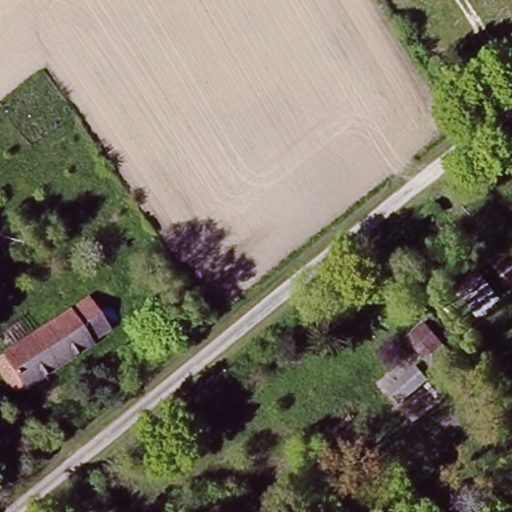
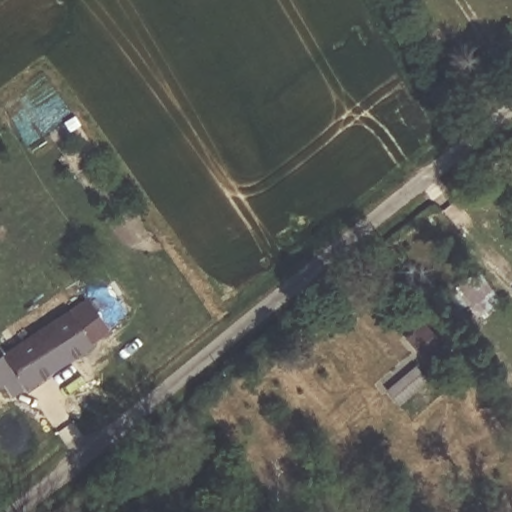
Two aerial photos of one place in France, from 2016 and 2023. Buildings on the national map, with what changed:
unchanged [(473,277),(493,308),(483,315),(464,284),(473,277)]
unchanged [(18,389),(14,383),(9,387),(0,374),(0,360),(72,310),(88,298),(112,330),(94,342),(34,385),(30,380),(18,389)]
unchanged [(422,323),(445,353),(434,361),(412,330),(422,323)]
unchanged [(387,395),(419,373),(427,385),(395,408),(387,395)]

